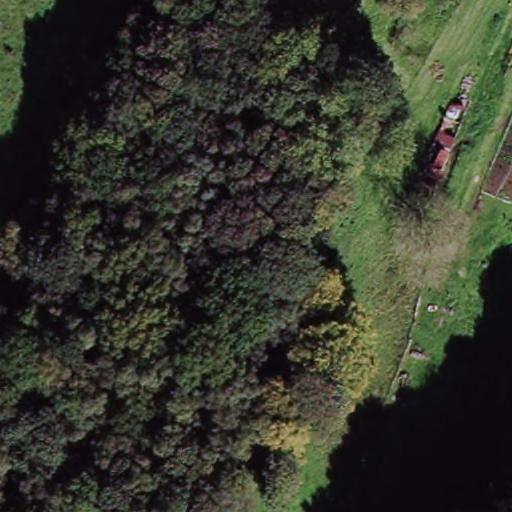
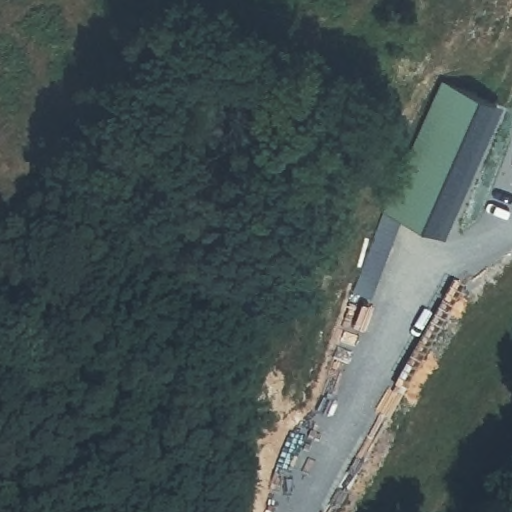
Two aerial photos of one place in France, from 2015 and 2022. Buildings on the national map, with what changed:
new [(384,210),(441,77),(502,104),(445,238),(384,210)]
demolished [(432,214),(414,207),(452,112),(472,122),(432,214)]

